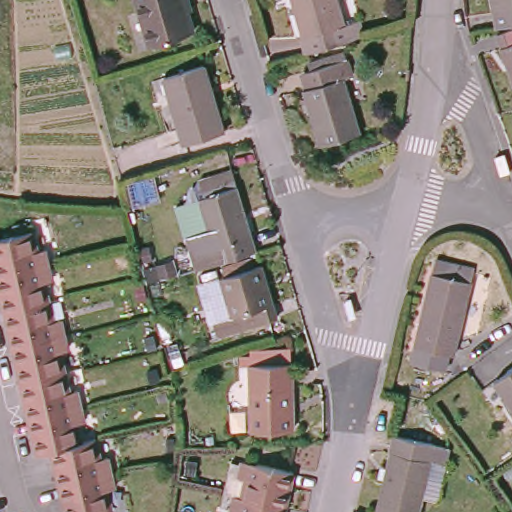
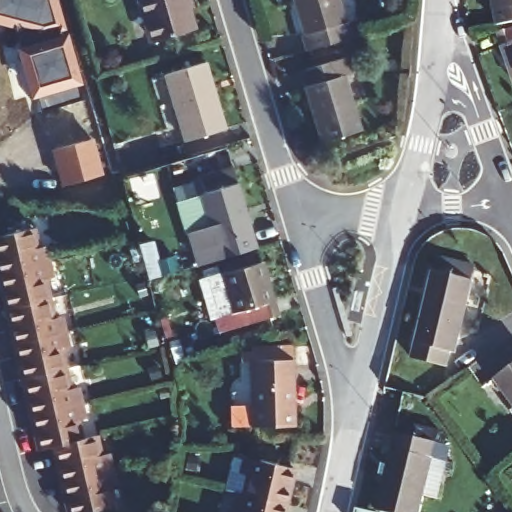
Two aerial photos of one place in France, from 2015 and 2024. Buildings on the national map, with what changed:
new [(83,84),(78,86),(82,100),(41,111),(37,98),(30,99),(16,48),(23,46),(18,30),(0,25),(0,0),(58,0),(68,33),(83,84)]
unchanged [(151,37),(140,0),(184,0),(191,25),(151,37)]
unchanged [(287,0),(335,0),(340,16),(353,13),(358,30),(300,46),(297,31),(287,0)]
unchanged [(493,0),(512,0),(512,17),(496,20),(493,0)]
unchanged [(494,29),(512,22),(512,79),(494,29)]
unchanged [(350,66),(342,69),(358,125),(317,137),(300,82),(307,79),(302,62),(345,50),(350,66)]
unchanged [(224,123),(183,135),(162,70),(203,58),(224,123)]
new [(101,177),(60,188),(50,151),(91,140),(101,177)]
unchanged [(185,230),(175,195),(198,188),(192,170),(230,159),(237,176),(257,244),(194,263),(185,230)]
unchanged [(0,229),(25,223),(30,244),(37,243),(40,257),(0,267),(0,229)]
unchanged [(450,343),(447,358),(410,350),(414,335),(430,262),(433,249),(474,258),(471,271),(455,344),(450,343)]
unchanged [(155,274),(152,259),(170,254),(174,269),(155,274)]
unchanged [(0,267),(40,257),(45,275),(38,276),(42,293),(0,304),(0,302),(0,267)]
unchanged [(272,309),(215,328),(210,312),(199,275),(218,269),(257,258),(272,309)]
unchanged [(10,339),(0,304),(42,293),(47,312),(53,310),(57,326),(10,339)]
unchanged [(10,339),(57,326),(62,342),(55,343),(60,364),(18,375),(10,339)]
unchanged [(252,421),(252,358),(252,352),(290,353),(290,359),(290,421),(252,421)]
unchanged [(493,373),(512,360),(512,398),(493,373)]
unchanged [(27,410),(18,375),(60,364),(65,384),(72,383),(75,397),(27,410)]
unchanged [(37,445),(27,410),(75,397),(80,414),(73,415),(78,434),(50,441),(37,445)]
unchanged [(413,512),(386,512),(372,509),(390,428),(430,438),(413,512)]
unchanged [(50,441),(78,434),(92,431),(96,450),(104,448),(108,465),(59,478),(50,441)]
unchanged [(240,492),(245,472),(238,470),(242,455),(292,467),(283,503),(240,492)]
unchanged [(108,465),(112,481),(105,483),(108,501),(67,511),(59,478),(108,465)]
unchanged [(236,509),(229,508),(233,491),(240,492),(283,503),(281,512),(235,512),(236,509)]
unchanged [(352,508),(367,512),(352,512),(352,508)]

